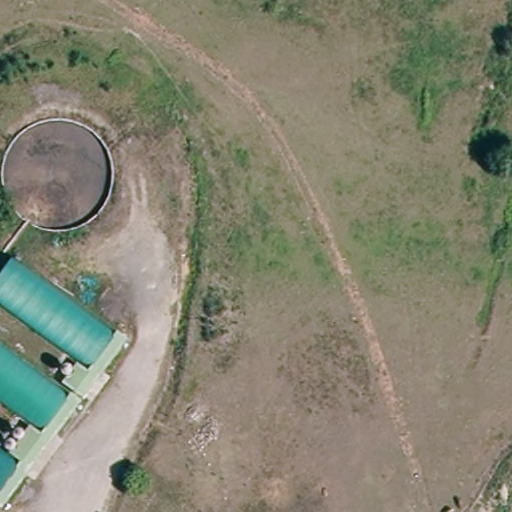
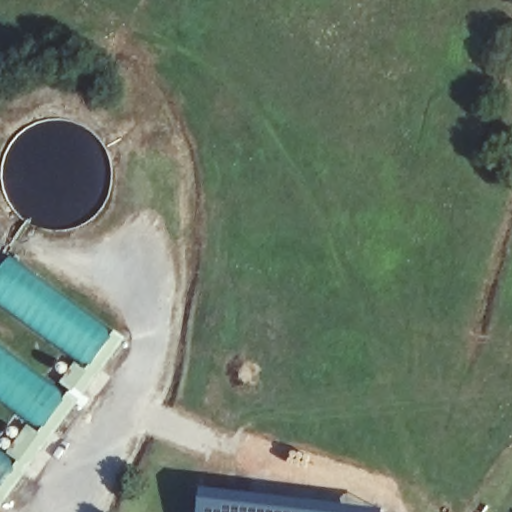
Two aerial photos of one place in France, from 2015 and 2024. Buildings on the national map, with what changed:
unchanged [(91,372),(94,369),(0,294),(0,278),(20,252),(131,339),(87,394),(69,379),(80,363),(91,372)]
unchanged [(14,448),(2,439),(21,416),(32,425),(35,422),(0,394),(0,334),(84,400),(2,503),(0,501),(0,442),(12,451),(14,448)]
new [(386,510),(386,512),(200,512),(203,488),(386,510)]

